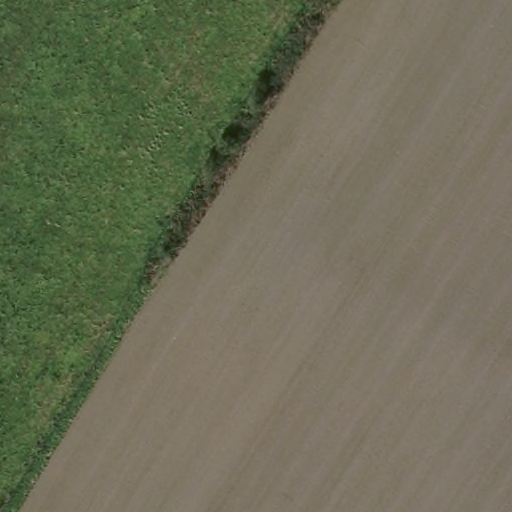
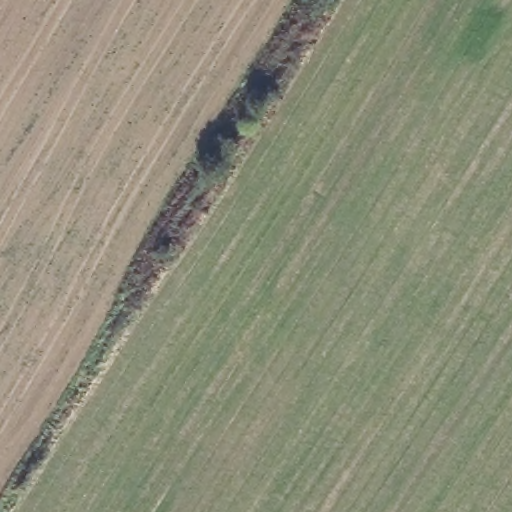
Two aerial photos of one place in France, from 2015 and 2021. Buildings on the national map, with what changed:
[]

